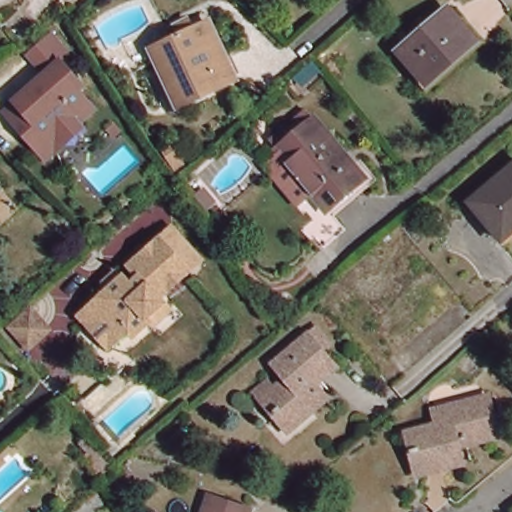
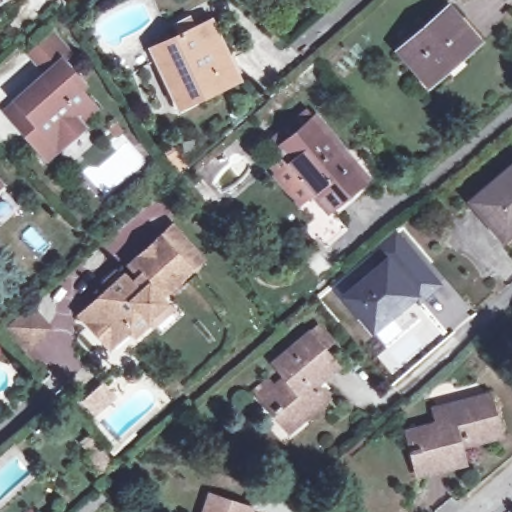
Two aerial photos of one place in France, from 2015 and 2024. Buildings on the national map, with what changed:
unchanged [(475,39),(427,81),(399,50),(448,8),(475,39)]
unchanged [(151,65),(142,44),(171,30),(166,20),(178,14),(183,25),(200,17),(226,71),(173,95),(168,98),(151,65)]
unchanged [(43,159),(0,111),(0,110),(41,73),(24,53),(47,33),(64,52),(55,60),(78,86),(73,90),(90,110),(75,123),(54,141),(53,150),(43,159)]
unchanged [(120,67),(114,71),(106,56),(113,52),(120,67)]
unchanged [(323,195),(273,134),(310,102),(361,164),(323,195)]
unchanged [(471,201),(512,166),(512,231),(503,239),(471,201)]
unchanged [(328,197),(340,212),(318,229),(306,215),(328,197)]
unchanged [(78,313),(100,291),(94,285),(106,273),(113,279),(114,278),(123,286),(131,278),(120,267),(151,238),(163,228),(194,260),(182,271),(153,298),(156,302),(164,311),(149,325),(143,320),(143,319),(125,336),(120,331),(99,351),(78,328),(69,320),(78,313)]
new [(381,259),(374,248),(397,230),(441,283),(417,305),(411,302),(372,335),(339,296),(381,259)]
unchanged [(33,343),(14,323),(32,306),(50,326),(33,343)]
unchanged [(261,420),(243,398),(241,400),(238,396),(252,384),(256,387),(259,391),(270,382),(259,369),(295,339),(303,332),(316,347),(308,354),(321,369),(299,388),(298,389),(301,394),(304,393),(314,405),(299,417),(298,414),(281,429),(274,435),(261,420)]
unchanged [(402,452),(396,430),(427,422),(424,409),(479,395),(489,434),(449,444),(453,459),(416,468),(406,471),(402,452)]
unchanged [(53,409),(62,402),(92,433),(81,442),(53,409)]
unchanged [(140,460),(129,470),(123,463),(134,453),(140,460)]
unchanged [(206,490),(245,502),(242,512),(198,512),(206,490)]

